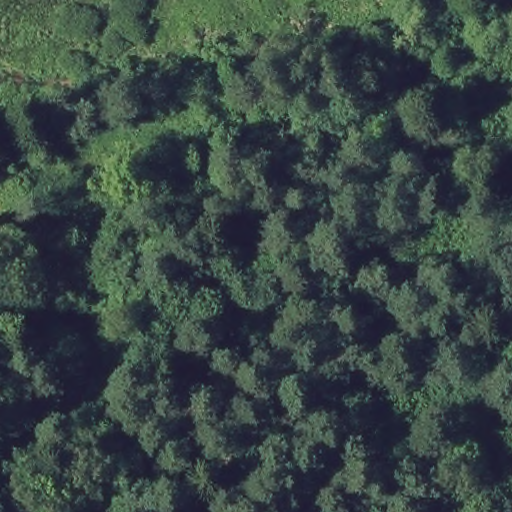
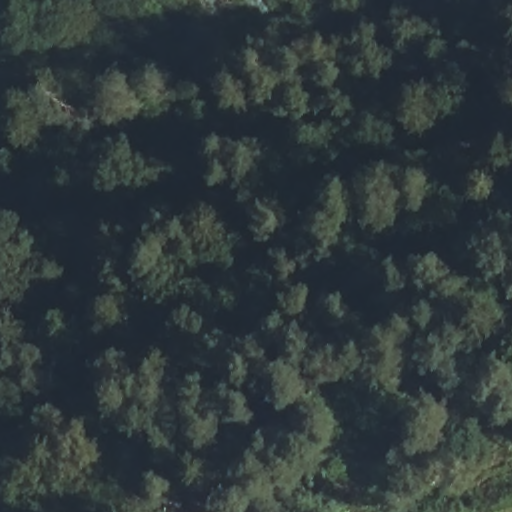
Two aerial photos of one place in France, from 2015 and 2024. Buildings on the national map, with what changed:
[]

